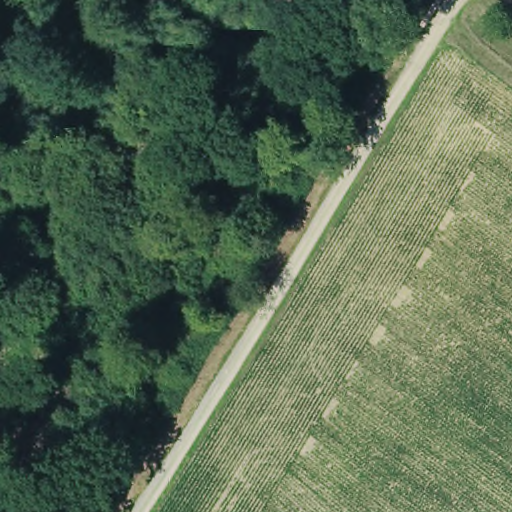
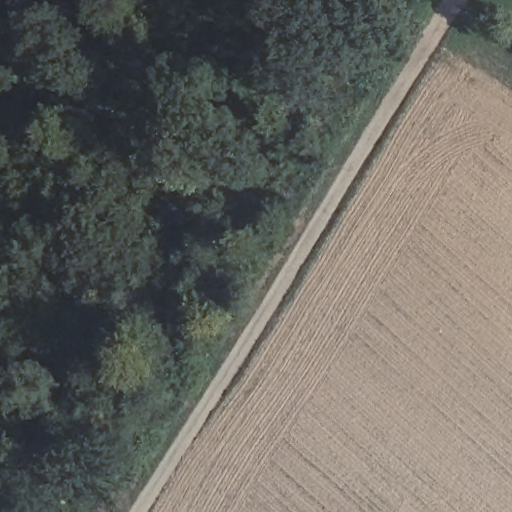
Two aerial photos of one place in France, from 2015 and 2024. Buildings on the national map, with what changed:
[]

